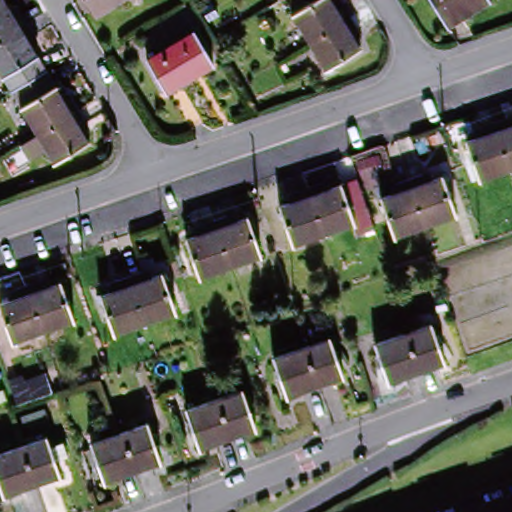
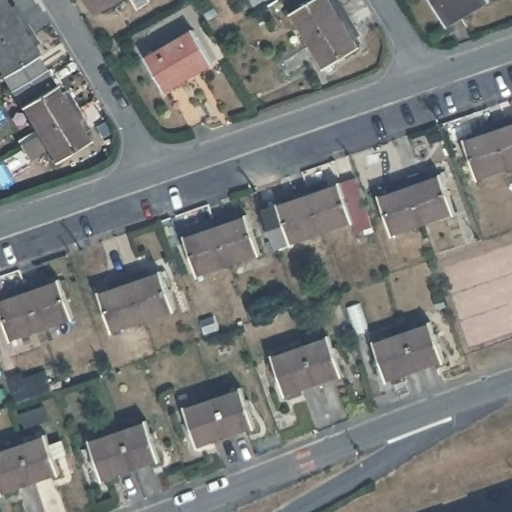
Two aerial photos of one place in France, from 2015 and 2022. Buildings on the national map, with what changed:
unchanged [(95,12),(88,0),(116,0),(95,12)]
unchanged [(303,42),(287,16),(314,0),(324,0),(325,3),(331,0),(335,0),(339,5),(346,17),(352,27),(357,35),(349,40),(354,50),(320,70),(303,42)]
unchanged [(444,27),(427,0),(486,0),(487,1),(461,17),(444,27)]
unchanged [(33,136),(17,110),(6,93),(0,82),(0,5),(8,18),(14,14),(20,26),(27,38),(22,41),(40,72),(51,90),(56,98),(62,95),(65,100),(73,112),(79,123),(74,126),(84,144),(50,165),(40,149),(24,159),(16,146),(33,136)]
unchanged [(197,38),(214,67),(168,96),(150,66),(197,38)]
unchanged [(481,135),(477,124),(490,120),(503,116),(507,126),(512,125),(512,167),(507,169),(477,179),(464,141),(481,135)]
unchanged [(381,158),(372,161),(368,149),(377,146),(381,158)]
unchanged [(453,213),(421,224),(389,236),(377,197),(394,192),(391,180),(404,175),(417,171),(421,182),(440,176),(453,213)]
unchanged [(295,200),(292,188),(303,184),(317,179),(321,192),(337,186),(353,180),(354,184),(370,230),(354,236),(350,223),(319,233),(290,243),(278,207),(295,200)]
unchanged [(206,239),(202,226),(214,222),(229,217),(233,229),(249,224),(262,259),(230,271),(200,281),(188,245),(206,239)]
unchanged [(121,288),(118,279),(130,275),(144,269),(148,278),(164,273),(177,310),(146,321),(116,332),(103,294),(121,288)]
unchanged [(39,330),(9,341),(0,315),(0,303),(14,297),(10,289),(24,284),(39,279),(41,288),(57,283),(70,319),(39,330)]
unchanged [(426,324),(439,362),(414,371),(401,333),(426,324)]
unchanged [(414,371),(384,382),(370,344),(401,333),(414,371)]
unchanged [(330,339),(343,376),(319,385),(305,348),(330,339)]
unchanged [(319,385),(289,396),(275,358),(305,348),(319,385)]
unchanged [(243,389),(254,427),(230,437),(218,398),(243,389)]
unchanged [(230,437),(199,448),(186,409),(218,398),(230,437)]
unchanged [(50,402),(56,420),(31,428),(25,411),(50,402)]
unchanged [(119,431),(144,423),(156,460),(131,469),(119,431)]
unchanged [(99,480),(86,443),(119,431),(131,469),(99,480)]
unchanged [(46,438),(50,448),(63,444),(68,457),(55,462),(59,474),(34,483),(22,446),(46,438)]
unchanged [(4,494),(0,483),(0,454),(22,446),(34,483),(4,494)]

